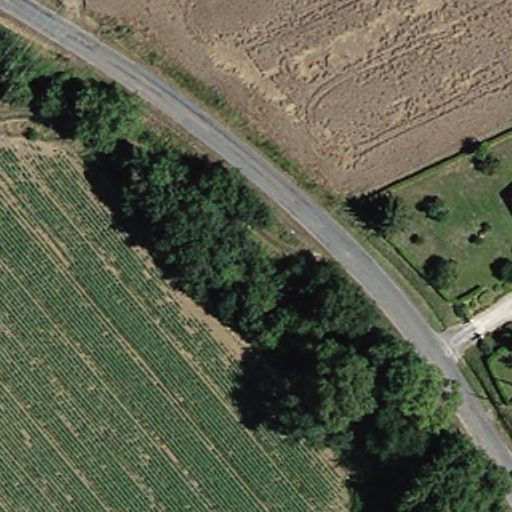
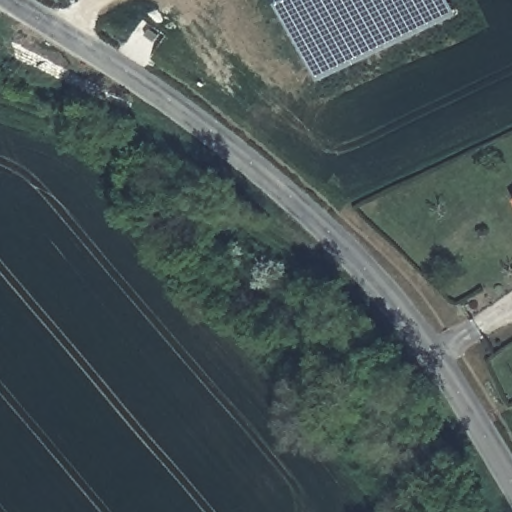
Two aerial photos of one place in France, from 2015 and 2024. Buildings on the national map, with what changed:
new [(320,80),(281,0),(451,0),(457,14),(320,80)]
unchanged [(507,191),(512,188),(512,201),(507,191)]

